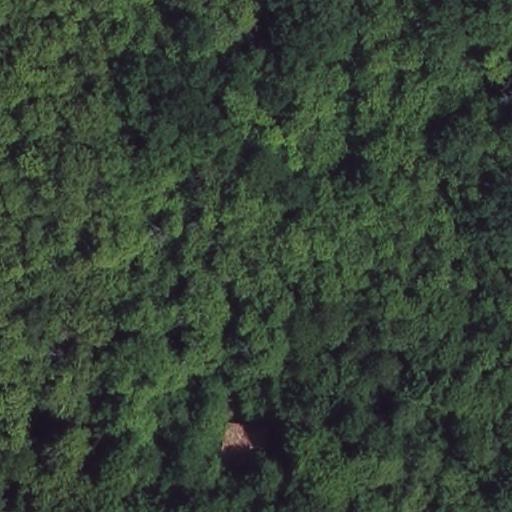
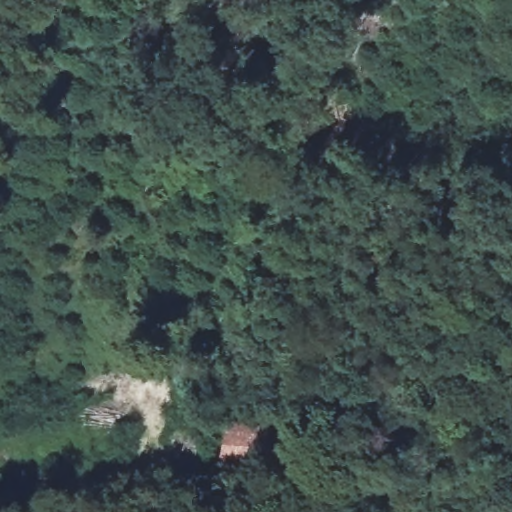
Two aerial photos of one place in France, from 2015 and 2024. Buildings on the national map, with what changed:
unchanged [(257,434),(266,437),(260,461),(224,452),(227,440),(230,427),(257,434)]

